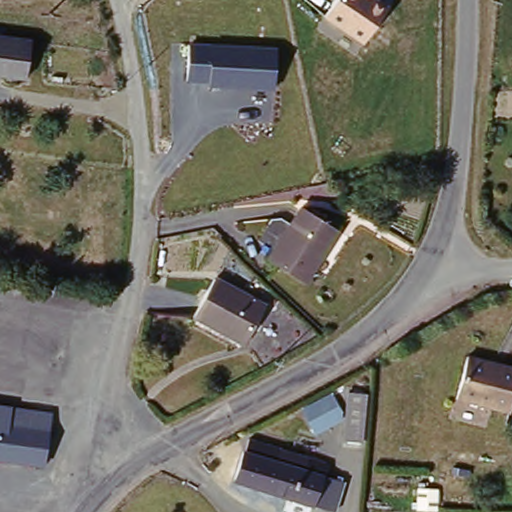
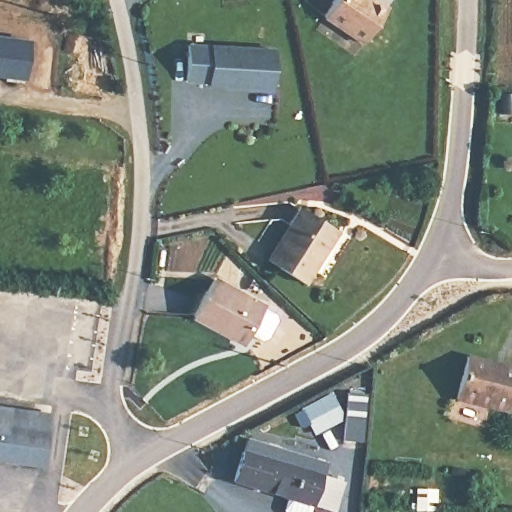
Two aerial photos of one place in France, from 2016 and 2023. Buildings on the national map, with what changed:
unchanged [(336,0),(380,0),(388,6),(363,42),(324,15),(336,0)]
unchanged [(0,76),(0,37),(32,41),(28,79),(0,76)]
unchanged [(188,42),(277,47),(276,88),(208,83),(209,80),(185,80),(188,42)]
unchanged [(302,279),(266,254),(301,201),(338,225),(302,279)]
unchanged [(247,341),(196,312),(219,274),(269,302),(247,341)]
unchanged [(491,362),(512,367),(512,407),(512,409),(457,397),(468,355),(491,361),(491,362)]
unchanged [(332,390),(343,408),(345,386),(368,388),(364,441),(343,439),(345,420),(315,436),(301,406),(332,390)]
unchanged [(48,411),(42,461),(0,457),(0,404),(48,411)]
unchanged [(233,484),(241,457),(246,446),(271,453),(267,465),(276,468),(279,458),(305,467),(321,471),(318,482),(338,488),(330,512),(317,512),(309,509),(233,484)]

